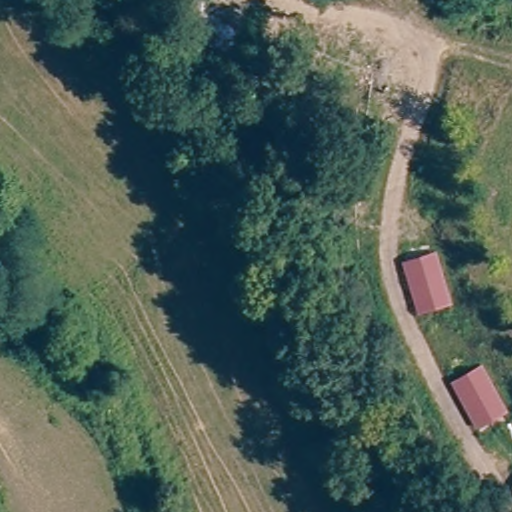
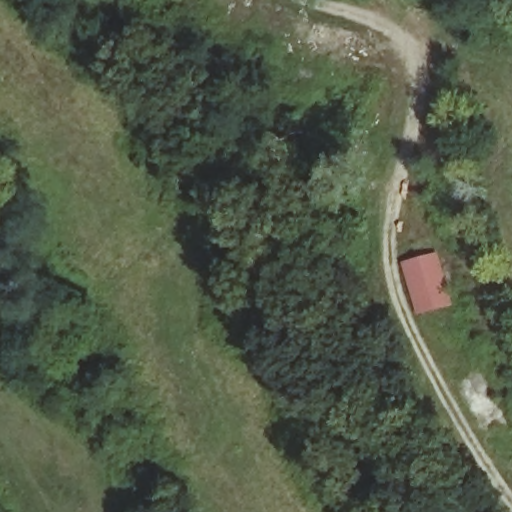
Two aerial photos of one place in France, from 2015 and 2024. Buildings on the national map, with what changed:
unchanged [(433,255),(449,305),(417,318),(399,266),(433,255)]
demolished [(474,432),(447,386),(479,368),(507,415),(474,432)]

